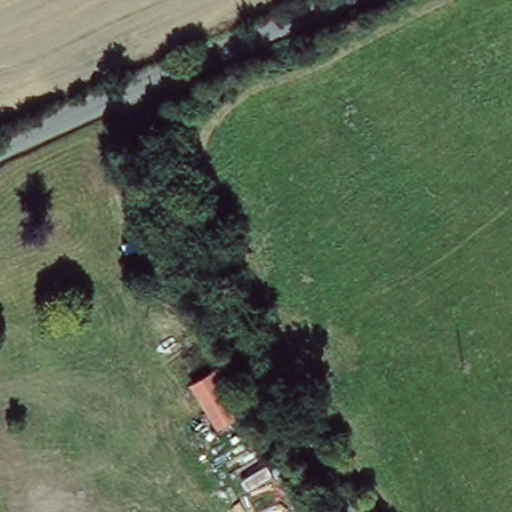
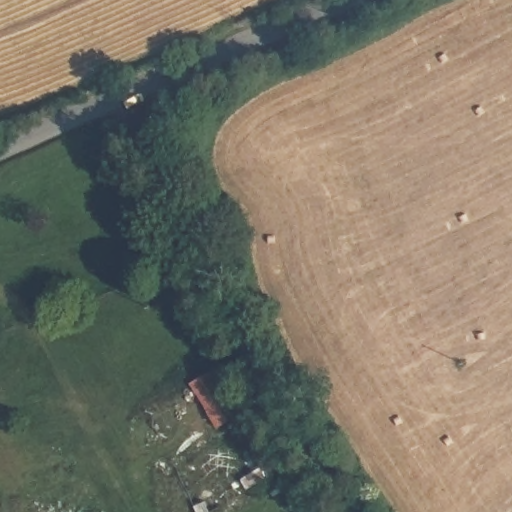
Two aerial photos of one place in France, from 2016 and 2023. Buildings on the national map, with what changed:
unchanged [(253,413),(216,433),(189,384),(220,363),(253,413)]

